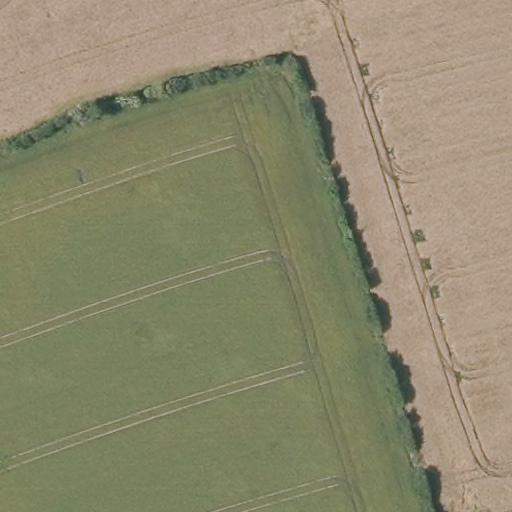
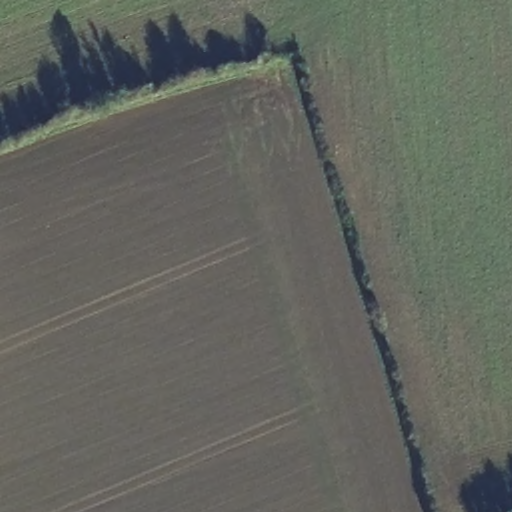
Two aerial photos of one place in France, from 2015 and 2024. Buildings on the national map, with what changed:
[]

